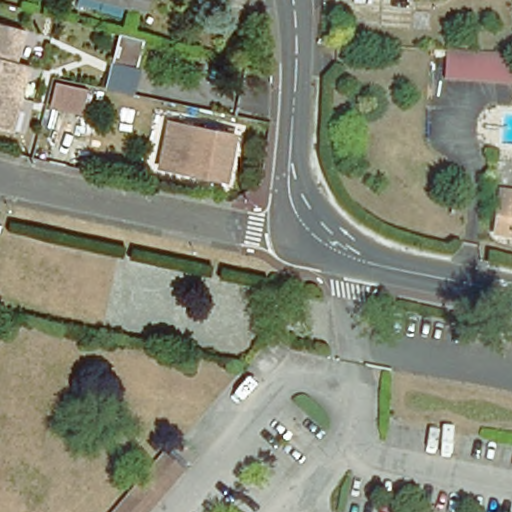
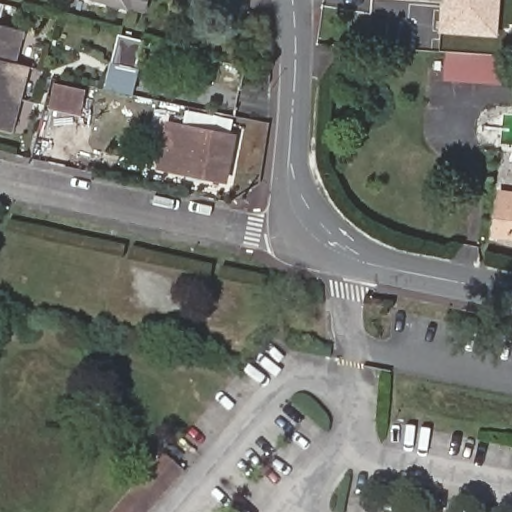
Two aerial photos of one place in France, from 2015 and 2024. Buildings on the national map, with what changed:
unchanged [(145,10),(110,0),(148,0),(145,10)]
new [(443,0),(501,0),(498,36),(439,32),(443,0)]
unchanged [(25,29),(16,61),(30,65),(13,130),(0,126),(0,22),(25,29)]
unchanged [(134,68),(111,62),(118,35),(141,40),(134,68)]
unchanged [(504,83),(446,80),(448,50),(506,54),(504,83)]
unchanged [(53,82),(85,89),(78,117),(46,109),(53,82)]
unchanged [(230,185),(161,170),(170,125),(240,140),(230,185)]
unchanged [(503,191),(512,192),(512,236),(498,235),(503,191)]
unchanged [(152,512),(111,512),(160,453),(184,474),(152,512)]

